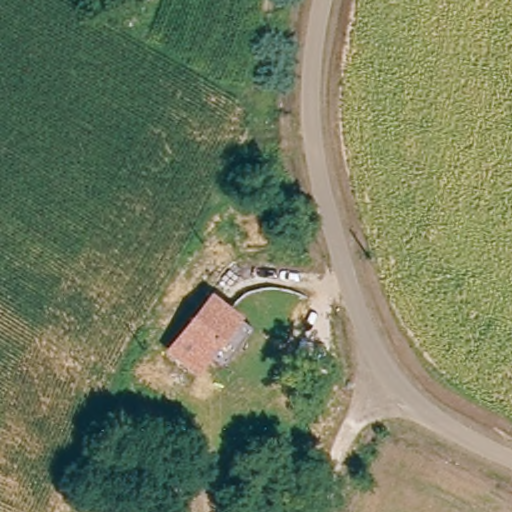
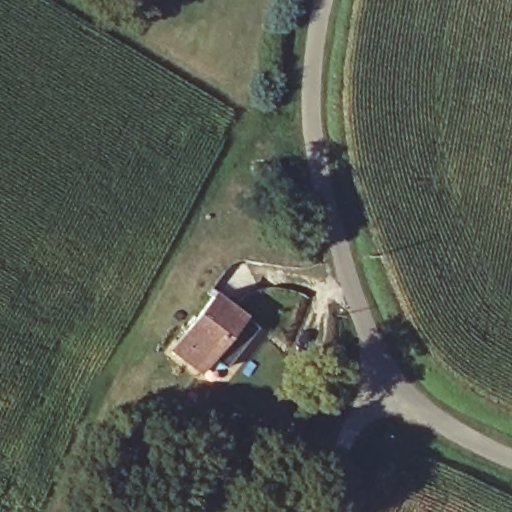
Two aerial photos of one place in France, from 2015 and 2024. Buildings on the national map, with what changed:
unchanged [(259,154),(275,151),(277,167),(261,169),(259,154)]
unchanged [(212,290),(242,315),(195,373),(166,350),(212,290)]

